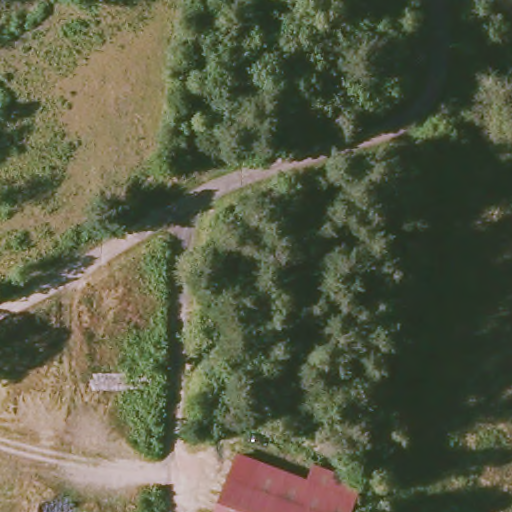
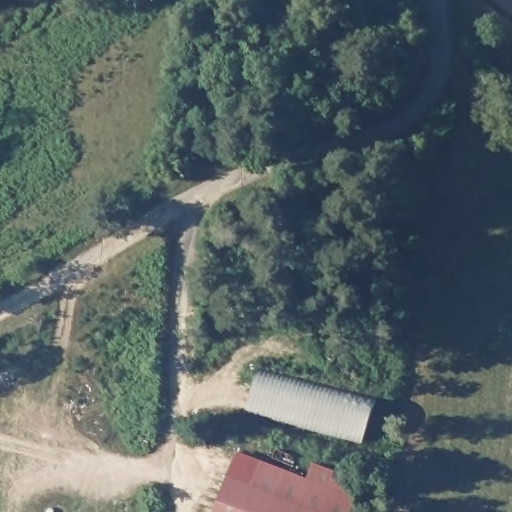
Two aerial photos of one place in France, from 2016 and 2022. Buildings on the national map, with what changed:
unchanged [(512,5),(507,0),(512,0),(512,5)]
new [(258,372),(374,402),(363,445),(246,414),(258,372)]
unchanged [(307,480),(314,463),(363,481),(351,512),(215,512),(238,448),(307,480)]

